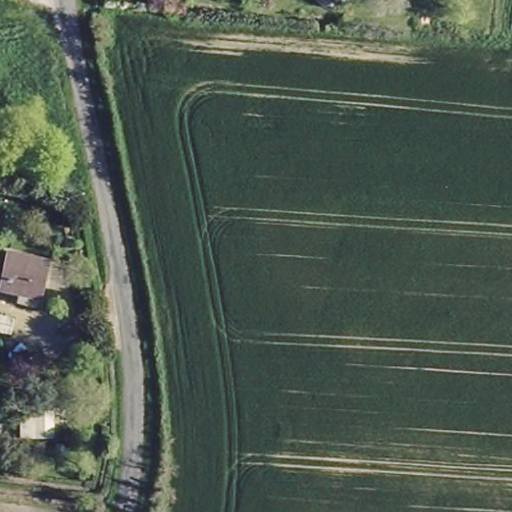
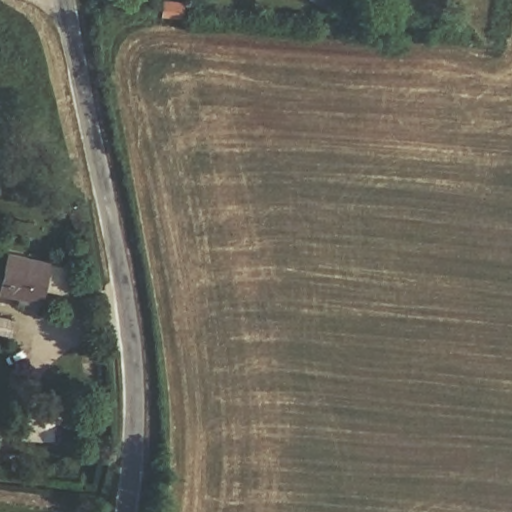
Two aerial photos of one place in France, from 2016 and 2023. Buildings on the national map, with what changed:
unchanged [(124,0),(143,0),(166,3),(165,12),(123,8),(124,0)]
unchanged [(36,267),(28,304),(0,298),(0,259),(36,267)]
unchanged [(10,318),(8,334),(0,333),(0,316),(10,318)]
unchanged [(51,412),(51,438),(36,438),(36,412),(51,412)]

